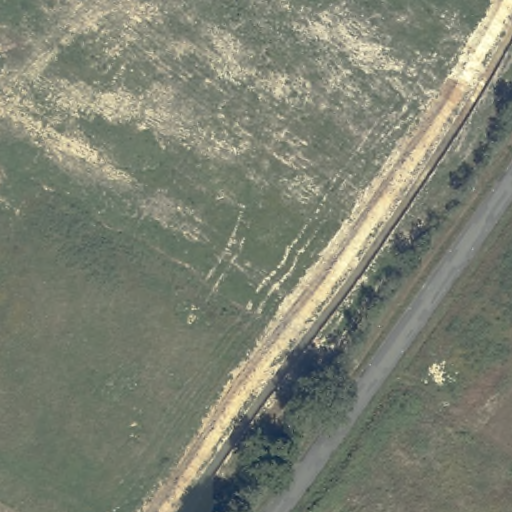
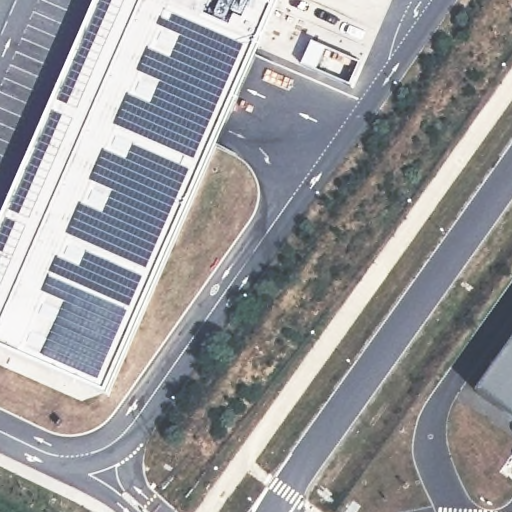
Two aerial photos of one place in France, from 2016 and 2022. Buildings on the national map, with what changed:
new [(0,349),(0,232),(100,0),(282,0),(109,396),(0,349)]
new [(480,395),(512,348),(512,417),(480,395)]

